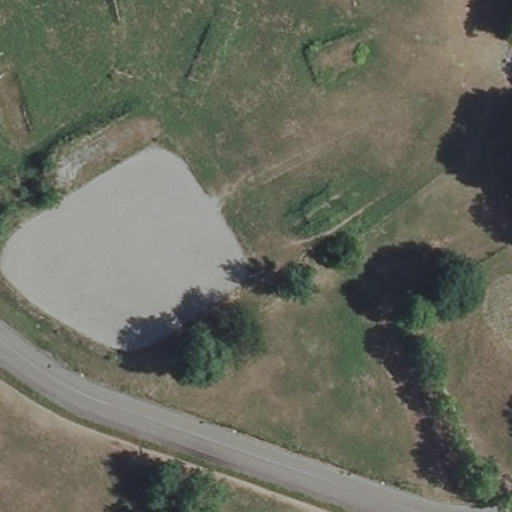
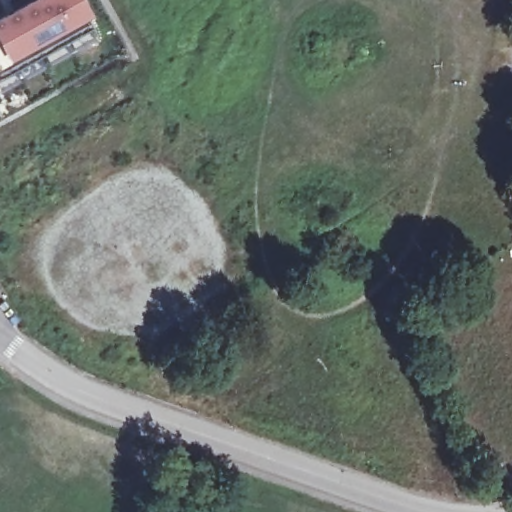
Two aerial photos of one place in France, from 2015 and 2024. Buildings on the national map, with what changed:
new [(31,0),(85,0),(94,15),(87,18),(92,27),(0,77),(0,17),(31,0)]

